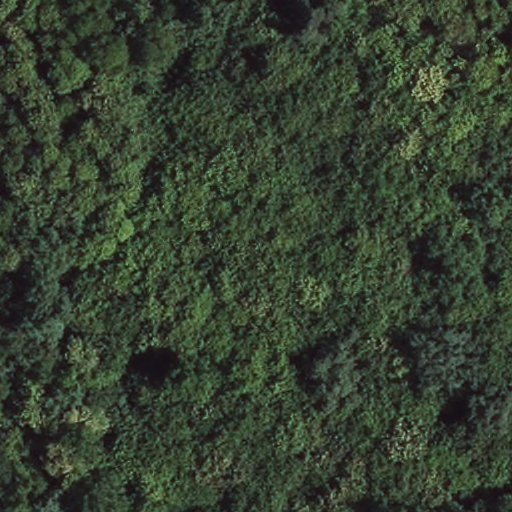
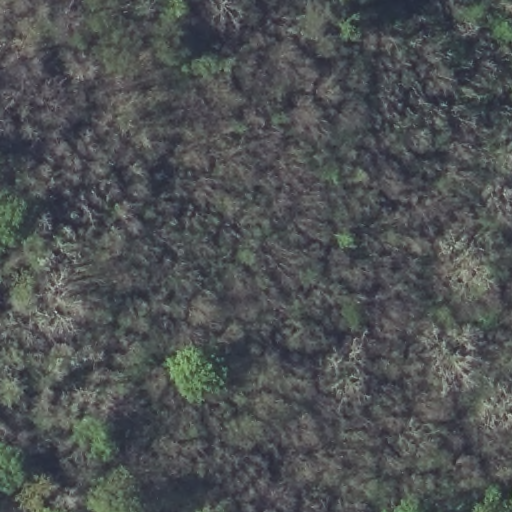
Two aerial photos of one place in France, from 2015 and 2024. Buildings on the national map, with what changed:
[]

